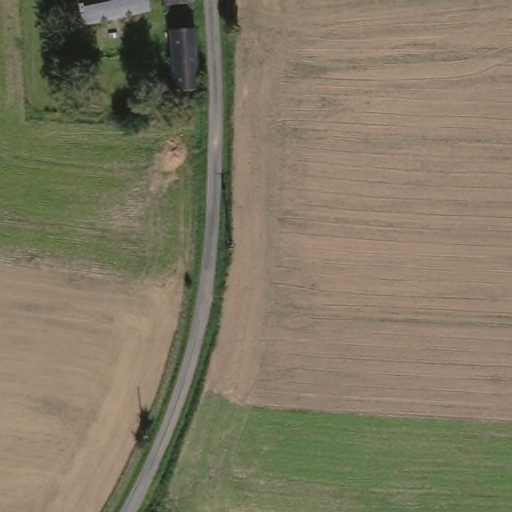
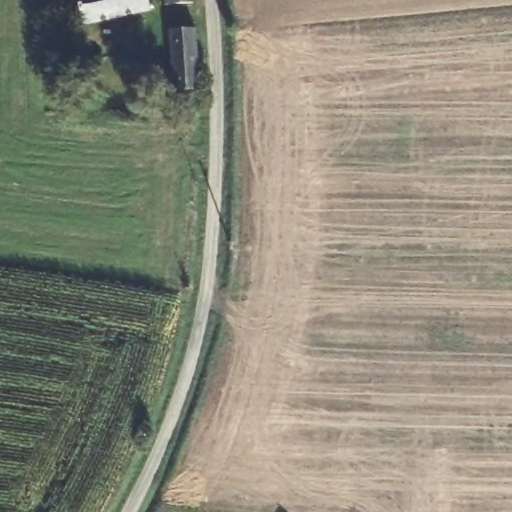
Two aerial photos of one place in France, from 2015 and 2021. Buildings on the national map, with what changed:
unchanged [(77,0),(111,0),(115,22),(83,30),(77,0)]
unchanged [(150,14),(115,22),(111,0),(147,0),(150,14)]
unchanged [(165,11),(163,0),(191,0),(191,10),(165,11)]
unchanged [(199,89),(194,90),(173,91),(171,49),(170,32),(194,31),(195,47),(197,47),(199,89)]

